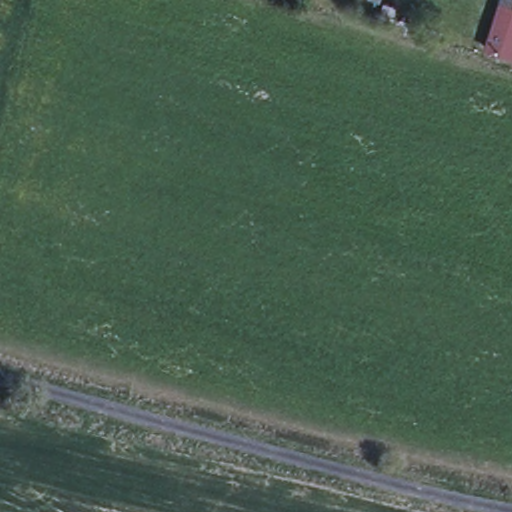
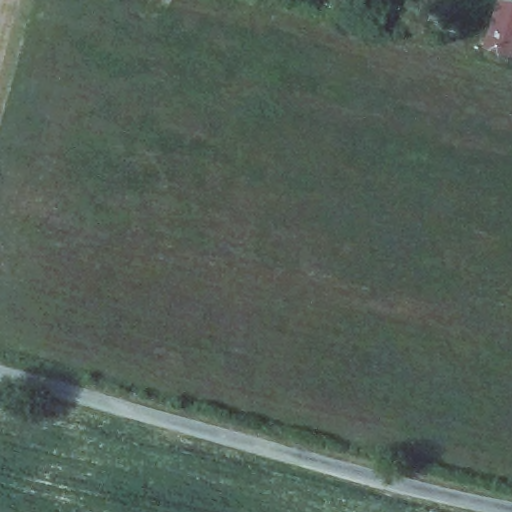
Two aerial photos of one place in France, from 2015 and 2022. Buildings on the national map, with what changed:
unchanged [(512,56),(486,48),(497,12),(512,17),(512,56)]

